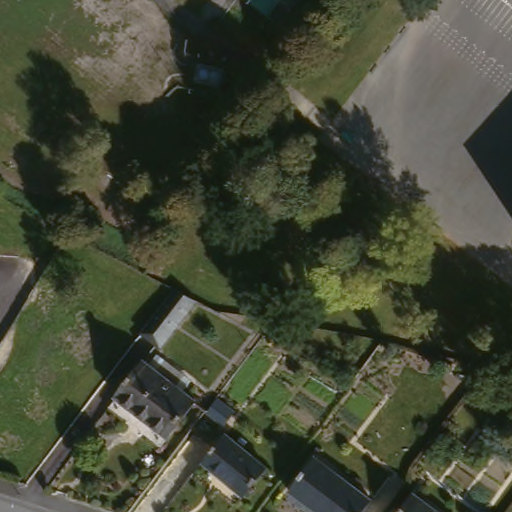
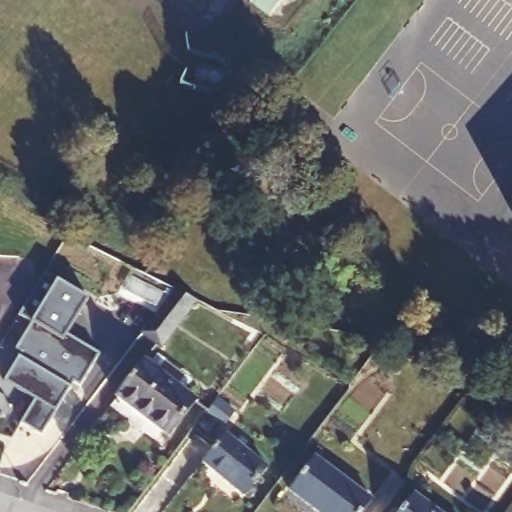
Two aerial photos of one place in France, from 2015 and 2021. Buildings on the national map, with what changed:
new [(44,432),(23,420),(37,397),(7,379),(24,351),(19,348),(34,322),(20,313),(45,272),(90,299),(69,333),(100,352),(81,384),(75,380),(72,385),(44,432)]
unchanged [(199,309),(168,349),(145,334),(174,297),(199,309)]
unchanged [(159,372),(168,361),(186,374),(178,386),(197,400),(164,443),(115,406),(149,363),(159,372)]
unchanged [(262,471),(240,499),(198,467),(220,438),(262,471)]
unchanged [(363,512),(314,512),(292,495),(317,463),(370,502),(363,512)]
unchanged [(396,512),(406,498),(425,512),(396,512)]

